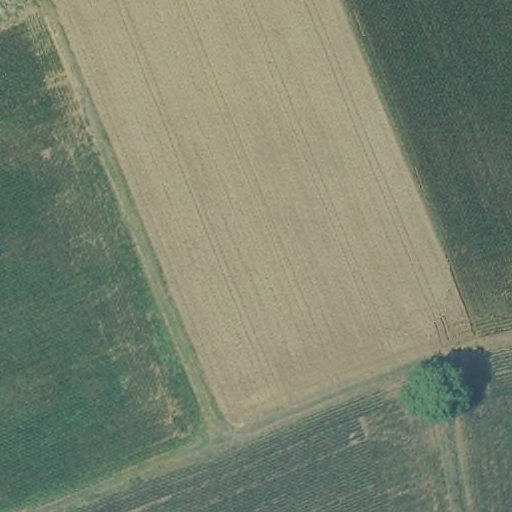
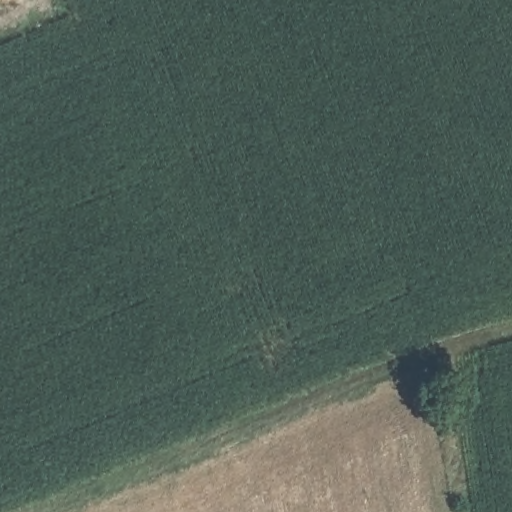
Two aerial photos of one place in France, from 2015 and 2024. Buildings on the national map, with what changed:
[]

